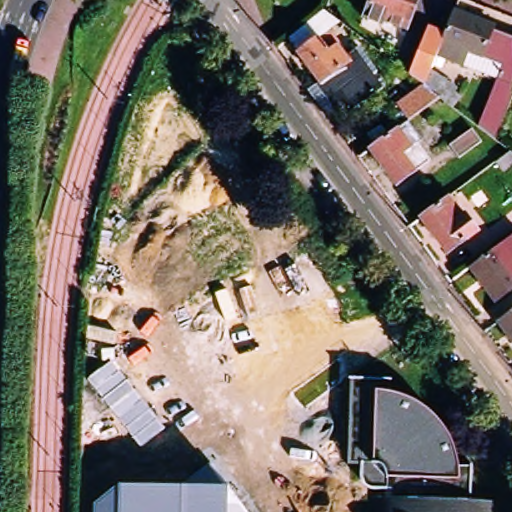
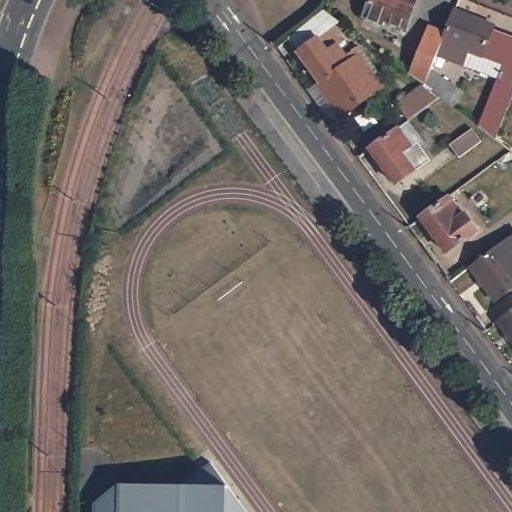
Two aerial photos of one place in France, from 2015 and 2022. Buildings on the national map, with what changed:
unchanged [(404,27),(381,19),(379,22),(361,15),(366,1),(366,0),(414,0),(404,27)]
unchanged [(512,30),(512,109),(500,136),(479,128),(494,80),(439,61),(431,70),(458,88),(411,122),(393,103),(417,85),(409,77),(428,37),(442,40),(458,11),(491,22),(512,30)]
unchanged [(312,22),(322,35),(331,29),(349,54),(354,51),(383,89),(341,119),(314,85),(317,82),(286,40),(312,22)]
unchanged [(394,134),(402,128),(415,146),(409,150),(421,167),(388,191),(363,156),(392,135),(394,134)]
unchanged [(471,133),(481,140),(456,161),(446,147),(468,130),(471,133)]
unchanged [(512,166),(504,171),(497,161),(511,150),(512,151),(512,166)]
unchanged [(446,197),(460,215),(461,215),(474,232),(444,255),(417,219),(446,197)]
unchanged [(512,289),(492,303),(467,269),(512,235),(512,289)]
unchanged [(512,340),(500,323),(512,315),(512,340)]
demolished [(373,495),(372,500),(380,501),(381,489),(376,489),(372,489),(368,488),(366,486),(363,485),(360,482),(359,479),(357,477),(356,473),(356,467),(356,463),(345,463),(347,380),(344,380),(344,378),(387,379),(387,381),(383,381),(383,391),(386,392),(393,393),(401,396),(407,398),(412,401),(416,404),(424,408),(429,415),(436,421),(439,426),(445,434),(449,440),(450,445),(452,452),(453,457),(454,461),(454,466),(466,466),(467,463),(469,464),(468,504),(494,505),(494,501),(502,501),(502,506),(499,506),(498,512),(366,512),(366,495),(373,495)]
unchanged [(176,483),(213,464),(247,512),(93,512),(93,503),(119,484),(176,483)]

